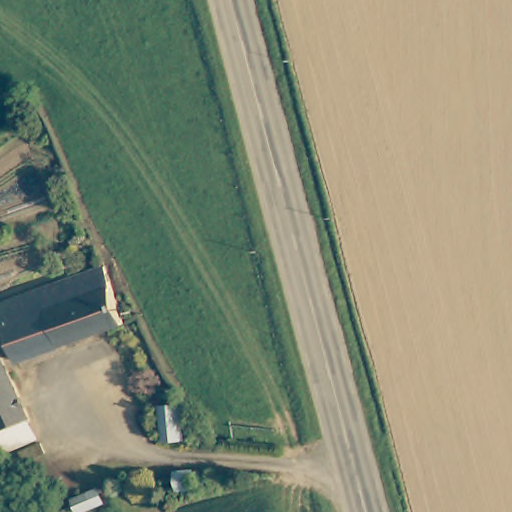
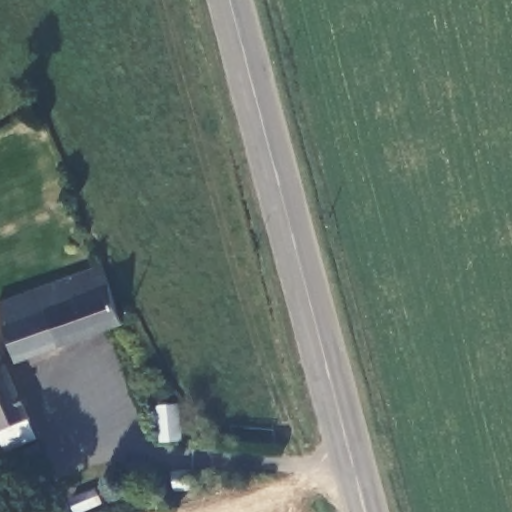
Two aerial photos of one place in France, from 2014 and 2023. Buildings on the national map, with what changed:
unchanged [(10,323),(0,307),(0,302),(103,265),(115,284),(10,323)]
unchanged [(15,345),(9,326),(10,325),(115,286),(129,320),(130,321),(21,359),(15,346),(15,345)]
unchanged [(7,449),(0,434),(0,354),(28,415),(26,416),(35,437),(7,449)]
unchanged [(163,442),(162,438),(159,410),(159,408),(158,406),(174,404),(181,438),(181,441),(163,442)]
unchanged [(39,441),(44,452),(22,462),(16,450),(39,441)]
unchanged [(176,487),(174,470),(204,468),(205,485),(176,487)]
unchanged [(72,498),(95,487),(100,501),(77,512),(72,498)]

